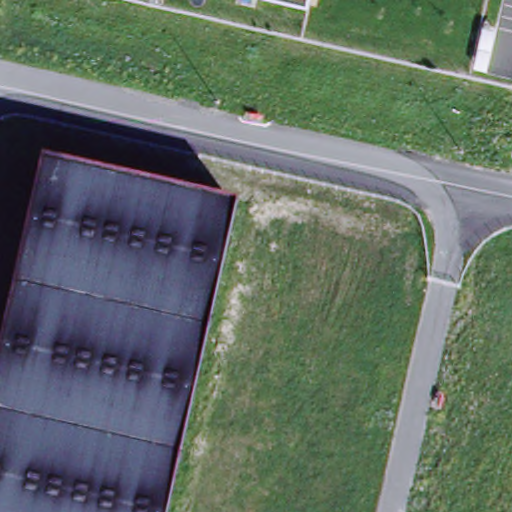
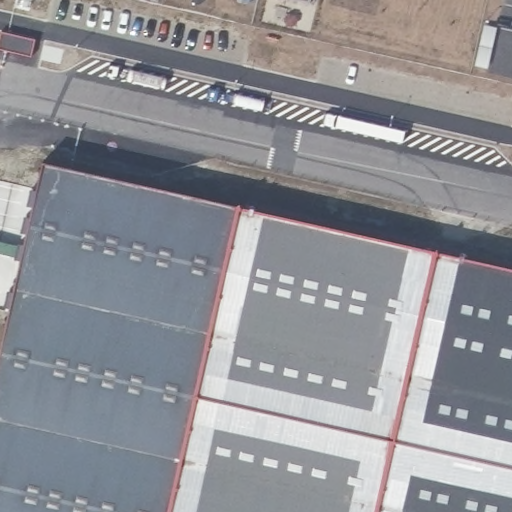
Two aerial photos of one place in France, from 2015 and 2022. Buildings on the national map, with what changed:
unchanged [(286,0),(310,0),(309,5),(286,0)]
unchanged [(47,161),(246,207),(177,512),(0,512),(0,376),(47,161)]
new [(512,512),(177,512),(246,207),(512,269),(512,512)]

